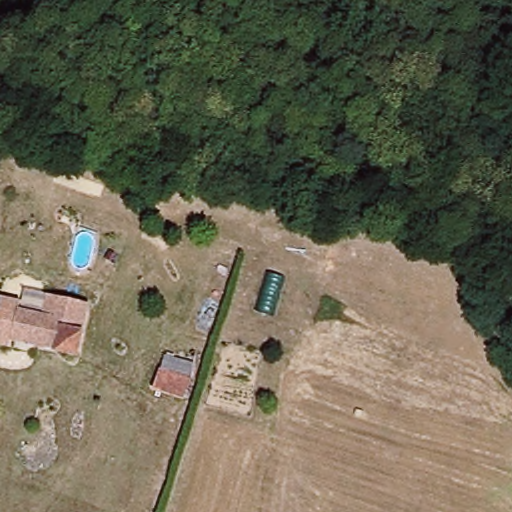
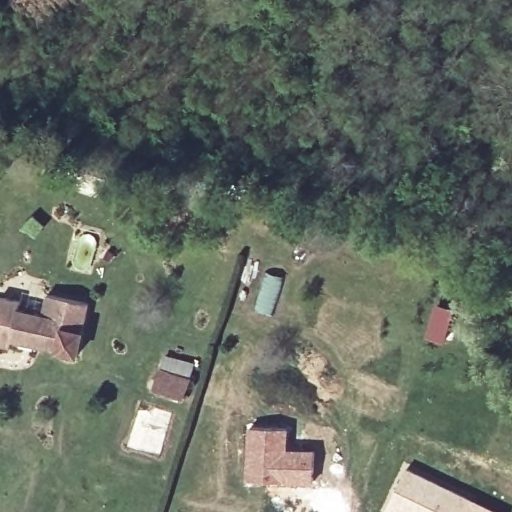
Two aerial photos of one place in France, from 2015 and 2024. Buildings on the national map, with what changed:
unchanged [(0,288),(18,292),(17,300),(42,304),(46,285),(88,295),(76,347),(9,332),(7,339),(0,337),(0,288)]
new [(163,353),(195,362),(183,401),(151,390),(163,353)]
new [(246,426),(289,427),(288,447),(315,448),(314,482),(245,479),(246,426)]
new [(407,466),(471,498),(465,512),(395,512),(388,509),(407,466)]

